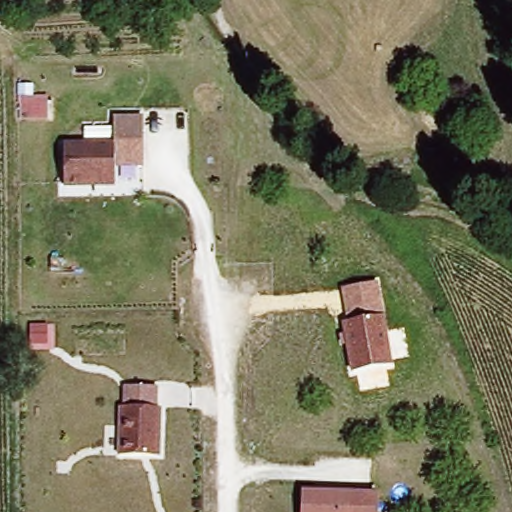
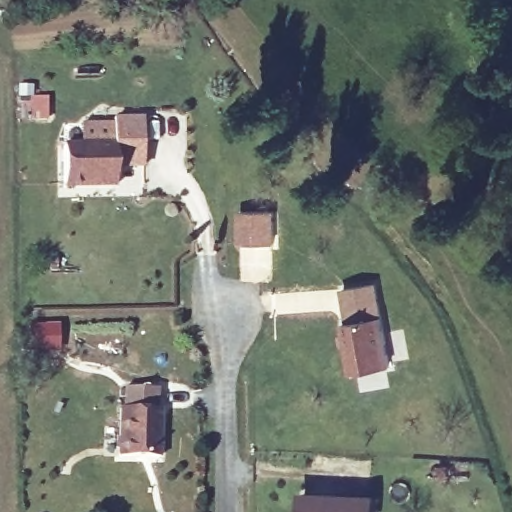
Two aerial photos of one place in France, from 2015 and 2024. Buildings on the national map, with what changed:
unchanged [(112,116),(144,115),(144,171),(116,171),(117,189),(64,189),(64,141),(112,140),(112,116)]
new [(275,210),(275,245),(240,246),(239,210),(275,210)]
unchanged [(391,365),(349,373),(342,323),(347,322),(342,288),(379,282),(391,365)]
unchanged [(125,408),(124,385),(155,386),(155,407),(162,407),(162,456),(117,456),(117,408),(125,408)]
unchanged [(379,512),(300,512),(301,490),(379,491),(379,512)]

